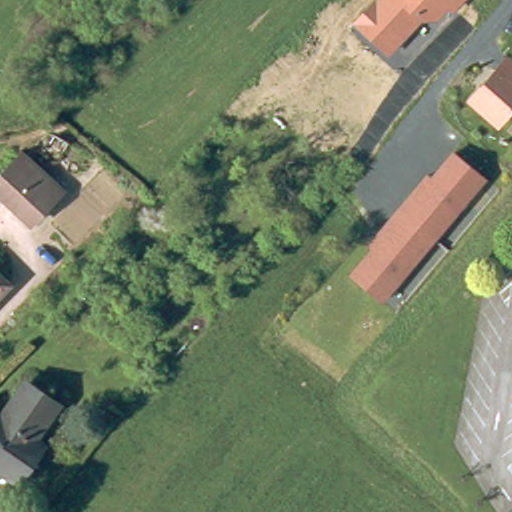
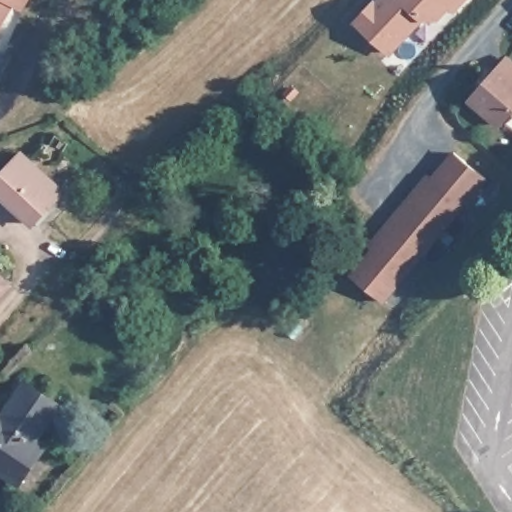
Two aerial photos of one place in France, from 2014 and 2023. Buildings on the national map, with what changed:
new [(13,5),(0,27),(0,0),(30,0),(23,11),(13,5)]
unchanged [(376,0),(466,0),(452,13),(448,9),(436,22),(422,22),(388,56),(352,21),(372,0),(376,0)]
unchanged [(510,50),(512,52),(512,111),(500,124),(468,96),(510,50)]
unchanged [(20,151),(65,190),(56,199),(32,224),(0,193),(0,174),(12,161),(20,151)]
unchanged [(487,181),(385,304),(348,273),(450,155),(487,181)]
unchanged [(0,293),(0,279),(7,287),(0,293)]
unchanged [(0,467),(0,413),(5,417),(30,384),(59,407),(34,439),(45,448),(29,467),(17,480),(11,475),(0,467)]

